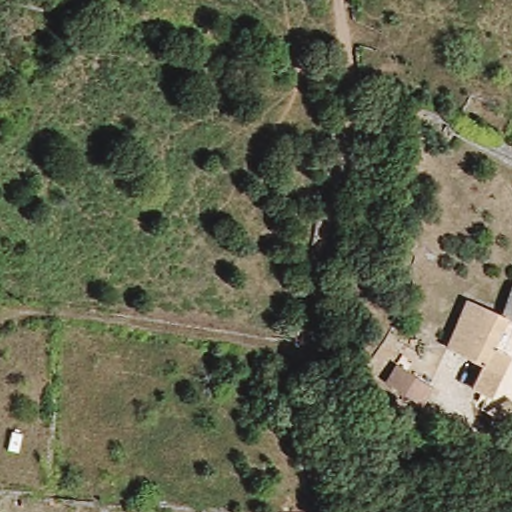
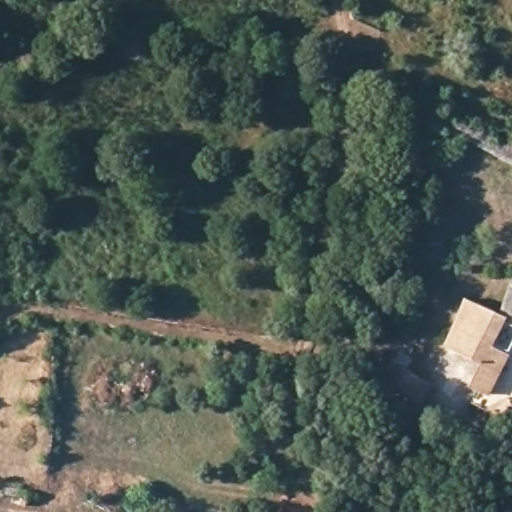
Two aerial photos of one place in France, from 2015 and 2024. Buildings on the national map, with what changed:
unchanged [(503,314),(512,272),(512,317),(503,314)]
unchanged [(507,353),(485,394),(468,386),(479,361),(445,344),(468,300),(503,314),(495,347),(507,353)]
unchanged [(393,365),(428,386),(418,404),(381,382),(393,365)]

